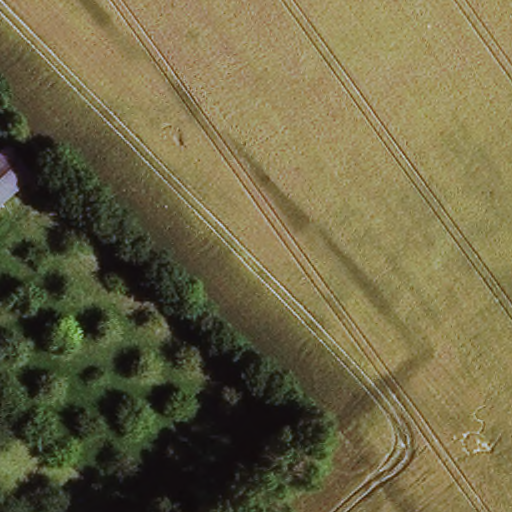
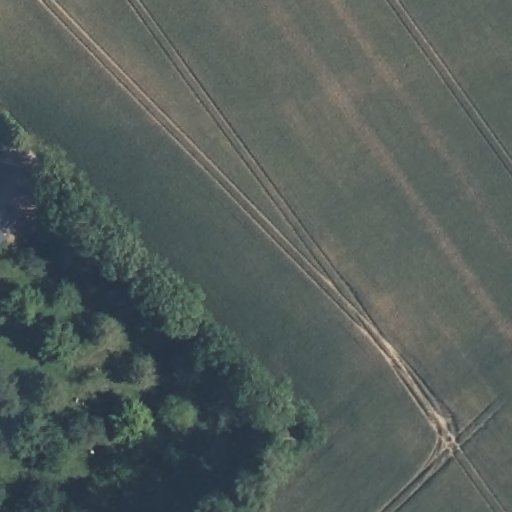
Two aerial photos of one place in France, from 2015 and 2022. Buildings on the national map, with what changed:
unchanged [(25,174),(0,199),(0,155),(2,153),(25,174)]

